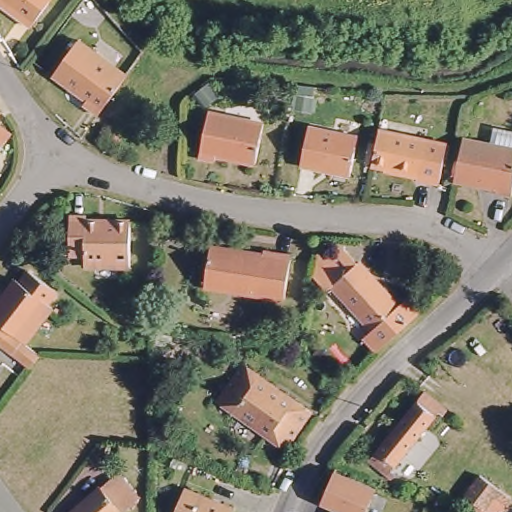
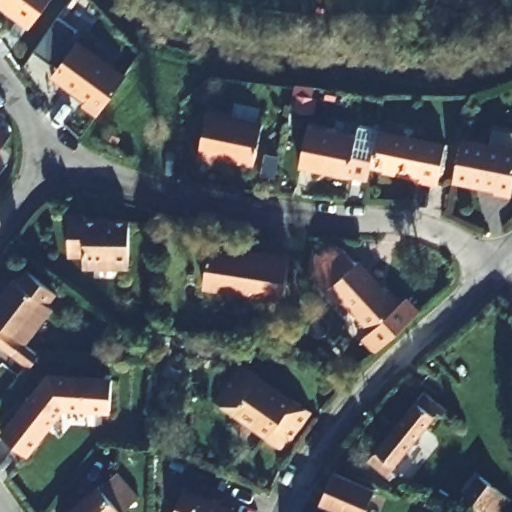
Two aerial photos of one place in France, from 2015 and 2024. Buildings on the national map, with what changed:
unchanged [(0,11),(0,3),(0,0),(36,0),(17,25),(0,11)]
unchanged [(70,101),(73,96),(42,68),(70,35),(114,73),(82,112),(70,101)]
new [(297,94),(313,97),(312,106),(296,104),(297,94)]
unchanged [(259,115),(251,157),(215,150),(213,157),(195,153),(205,104),(259,115)]
unchanged [(305,121),(355,130),(350,174),(298,164),(305,121)]
unchanged [(473,143),(477,125),(512,130),(512,137),(507,154),(512,155),(512,157),(501,198),(469,193),(470,184),(435,175),(442,139),(473,143)]
unchanged [(433,143),(427,182),(407,179),(408,174),(360,166),(367,131),(433,143)]
unchanged [(82,215),(82,223),(128,230),(122,269),(78,263),(80,252),(62,250),(68,213),(82,215)]
unchanged [(280,254),(273,295),(200,283),(206,243),(280,254)]
unchanged [(302,252),(312,262),(330,247),(387,305),(394,299),(407,315),(372,346),(360,330),(366,325),(325,276),(318,282),(301,263),(302,252)]
unchanged [(0,333),(0,291),(13,274),(17,278),(24,270),(52,291),(42,303),(47,308),(16,345),(10,341),(0,333)]
unchanged [(2,353),(0,352),(0,333),(10,341),(2,353)]
unchanged [(216,411),(237,373),(309,412),(288,451),(216,411)]
new [(111,411),(65,411),(30,456),(1,435),(47,375),(113,377),(111,411)]
unchanged [(417,385),(441,405),(437,410),(433,408),(410,436),(389,419),(417,385)]
unchanged [(415,465),(399,451),(387,465),(390,468),(385,474),(362,454),(389,419),(410,436),(428,449),(415,465)]
unchanged [(128,493),(114,510),(116,512),(65,512),(103,470),(128,493)]
unchanged [(329,511),(315,505),(330,471),(372,490),(362,512),(329,512),(329,511)]
unchanged [(484,507),(467,494),(474,485),(481,475),(498,486),(491,498),(487,504),(484,507)]
unchanged [(222,503),(221,507),(232,512),(167,512),(177,485),(222,503)]

